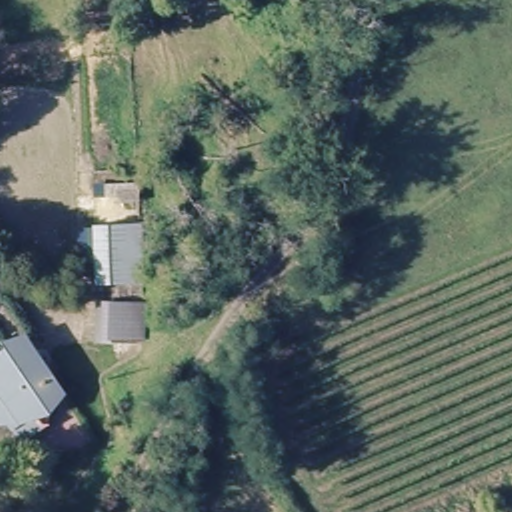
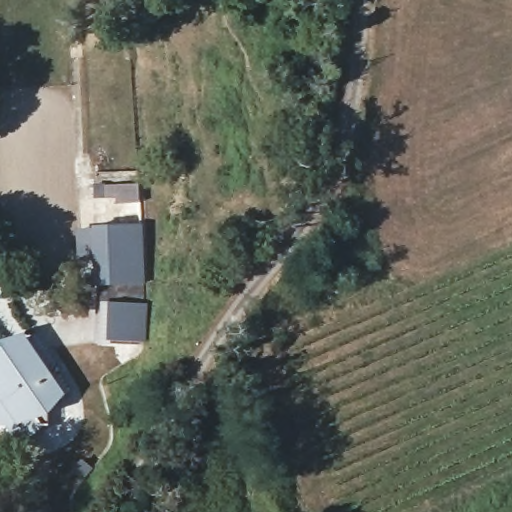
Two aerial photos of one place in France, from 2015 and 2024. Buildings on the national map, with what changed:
unchanged [(142,200),(152,276),(142,322),(101,315),(107,280),(97,204),(142,200)]
unchanged [(34,342),(66,405),(45,416),(50,426),(30,437),(22,425),(13,430),(5,415),(11,412),(1,394),(12,387),(5,376),(26,364),(17,351),(34,342)]

